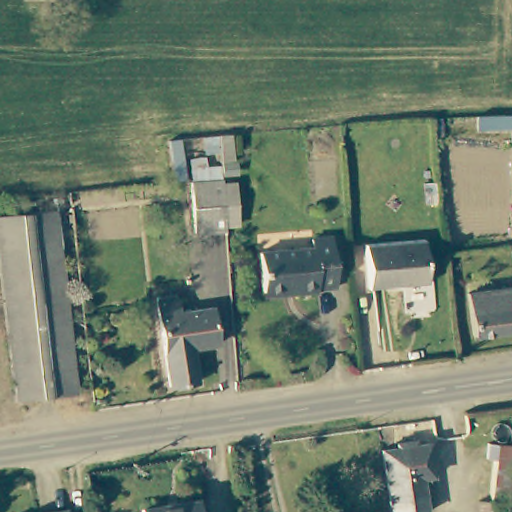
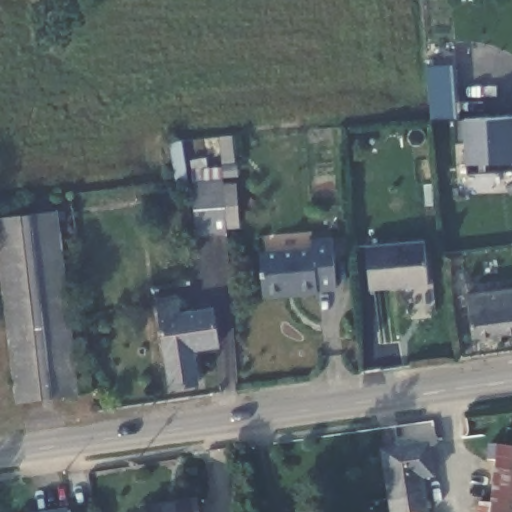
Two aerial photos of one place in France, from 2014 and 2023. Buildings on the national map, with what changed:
new [(436,113),(433,66),(452,66),(457,113),(436,113)]
new [(465,142),(455,142),(453,118),(465,117),(512,114),(512,170),(469,173),(465,142)]
unchanged [(175,186),(170,142),(181,140),(231,137),(240,185),(243,231),(230,232),(230,236),(179,238),(175,186)]
unchanged [(2,215),(60,210),(75,398),(19,404),(2,215)]
unchanged [(266,250),(315,249),(315,242),(331,241),(331,294),(321,293),(318,299),(298,299),(265,299),(266,289),(266,250)]
unchanged [(361,251),(423,243),(428,281),(367,290),(361,251)]
unchanged [(512,288),(512,330),(474,334),(468,294),(512,288)]
unchanged [(219,347),(192,350),(195,386),(166,389),(157,303),(179,301),(180,312),(215,310),(219,347)]
unchanged [(381,451),(429,444),(436,476),(420,479),(428,512),(391,512),(381,451)]
unchanged [(492,505),(497,465),(487,463),(489,445),(512,448),(512,507),(492,505)]
unchanged [(140,494),(195,487),(198,512),(143,512),(140,494)]
unchanged [(472,502),(492,505),(512,507),(512,512),(471,512),(472,502)]
unchanged [(65,511),(65,512),(60,512),(65,511)]

